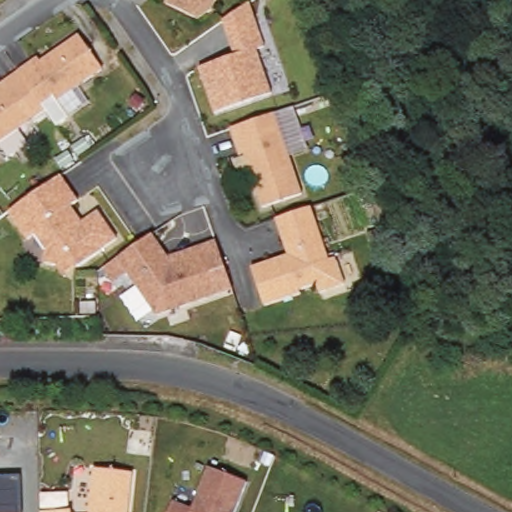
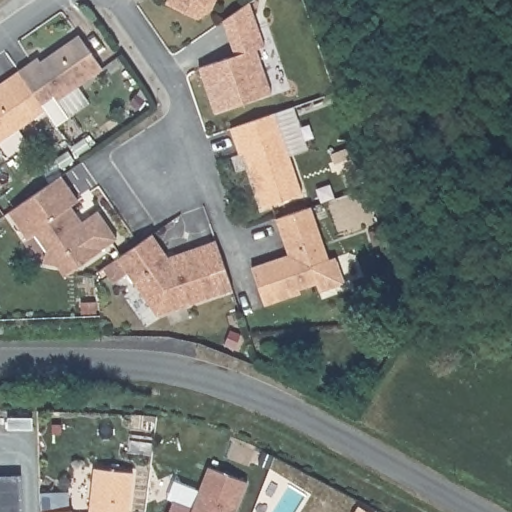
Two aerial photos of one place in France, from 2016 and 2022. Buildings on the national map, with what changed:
unchanged [(213,4),(199,15),(170,2),(170,0),(215,0),(213,4)]
unchanged [(274,89),(219,112),(201,68),(237,53),(224,20),(247,0),(250,0),(267,44),(258,48),(274,89)]
unchanged [(37,57),(40,61),(77,34),(102,68),(45,109),(17,71),(37,57)]
unchanged [(45,109),(46,110),(0,142),(0,82),(17,71),(45,109)]
unchanged [(306,189),(267,205),(246,152),(241,154),(231,128),(273,110),(306,189)]
unchanged [(116,239),(79,267),(68,267),(67,270),(44,265),(47,247),(37,235),(27,242),(7,214),(59,177),(77,202),(70,208),(81,223),(97,212),(116,239)]
unchanged [(303,290),(269,305),(252,269),(288,253),(272,217),(295,207),(306,202),(328,254),(335,251),(346,276),(322,287),(318,279),(302,286),(303,290)]
unchanged [(137,242),(147,235),(164,258),(198,246),(213,241),(227,282),(230,290),(153,316),(114,260),(137,242)]
unchanged [(192,508),(207,467),(245,482),(234,512),(167,512),(171,501),(192,508)]
unchanged [(132,473),(128,512),(89,512),(93,468),(132,473)]
unchanged [(20,512),(0,512),(0,475),(19,475),(20,512)]
unchanged [(71,510),(71,512),(41,512),(41,511),(71,510)]

